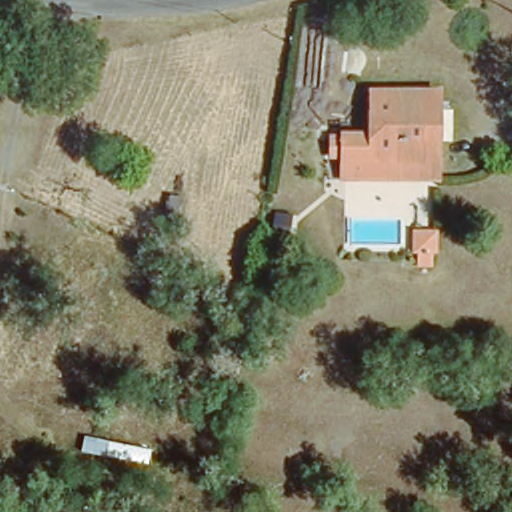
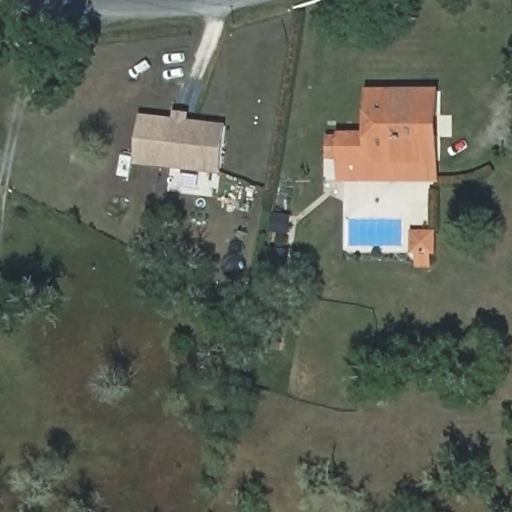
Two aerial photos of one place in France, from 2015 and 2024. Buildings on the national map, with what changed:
unchanged [(433,177),(340,174),(340,139),(367,142),(372,95),(434,101),(433,177)]
new [(137,162),(142,116),(175,120),(176,113),(187,114),(186,121),(224,125),(220,171),(137,162)]
unchanged [(436,229),(433,261),(414,260),(415,228),(436,229)]

